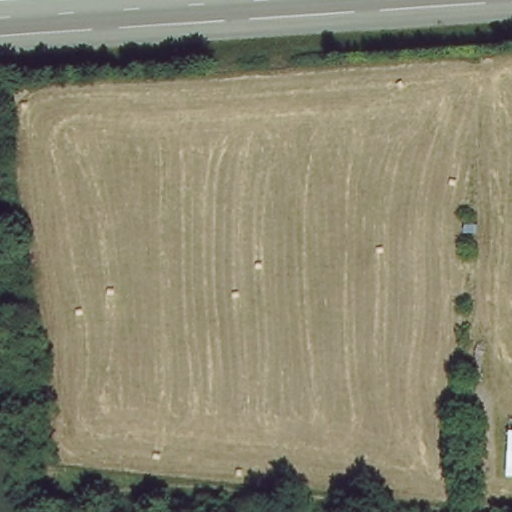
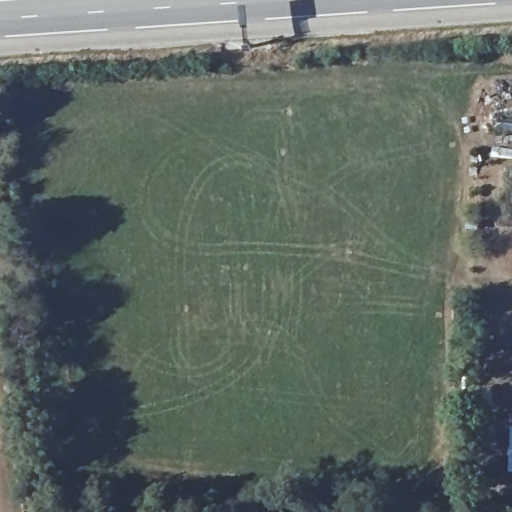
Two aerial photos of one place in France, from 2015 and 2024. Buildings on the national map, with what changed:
unchanged [(509,429),(512,429),(512,478),(507,478),(509,429)]

